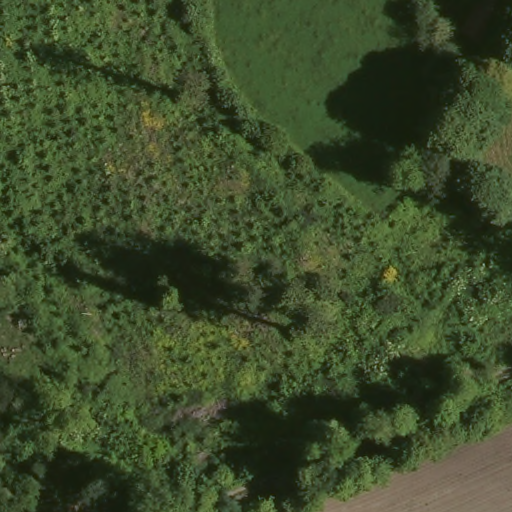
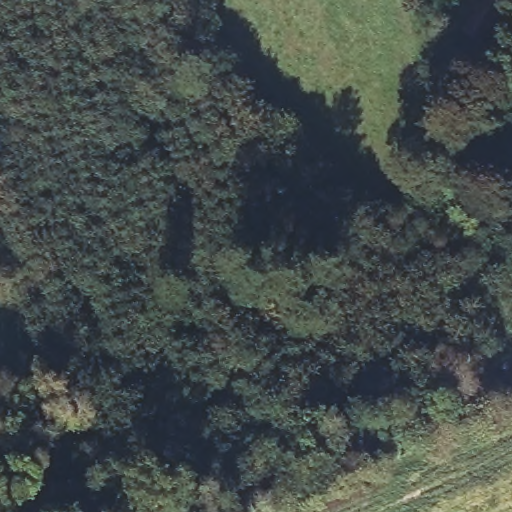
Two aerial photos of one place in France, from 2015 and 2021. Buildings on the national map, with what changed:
[]

